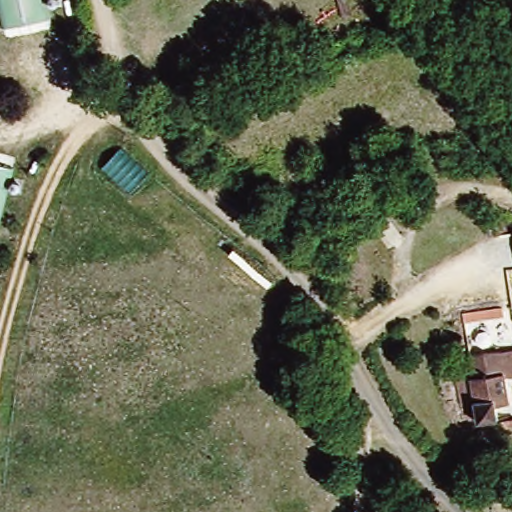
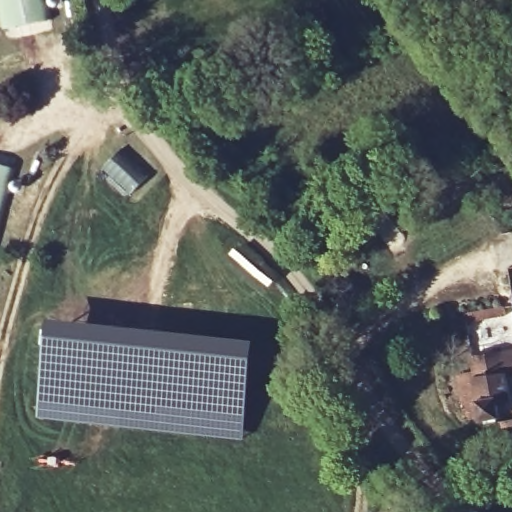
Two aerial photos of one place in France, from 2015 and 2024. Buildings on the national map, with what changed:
unchanged [(0,0),(38,0),(43,21),(0,30),(0,0)]
unchanged [(0,179),(0,169),(2,169),(0,179)]
new [(245,439),(40,416),(48,319),(255,341),(245,439)]
unchanged [(495,409),(495,423),(473,424),(472,409),(460,410),(456,376),(472,374),(471,356),(505,354),(512,354),(512,377),(507,378),(508,408),(495,409)]

